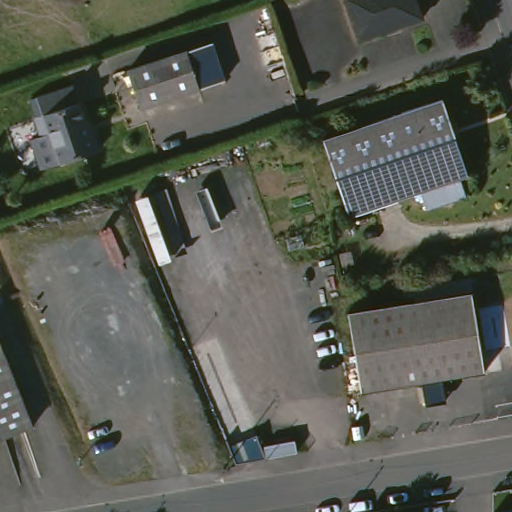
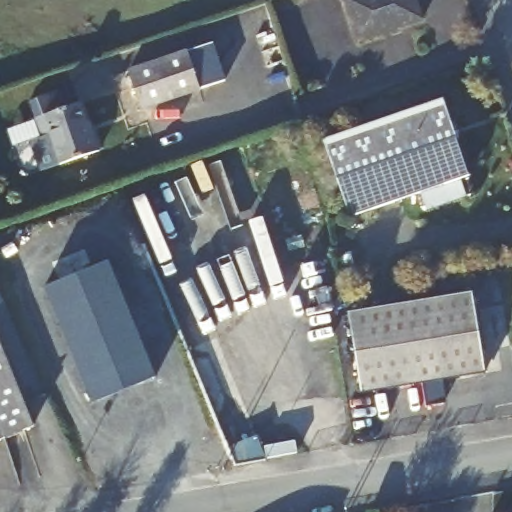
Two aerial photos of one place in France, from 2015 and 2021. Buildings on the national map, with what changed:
unchanged [(387,31),(388,34),(358,44),(343,0),(416,0),(423,19),(387,31)]
unchanged [(186,52),(199,91),(141,111),(127,72),(186,52)]
unchanged [(72,87),(88,132),(92,132),(99,151),(59,165),(49,136),(40,139),(34,121),(28,102),(72,87)]
unchanged [(447,101),(473,177),(465,181),(470,197),(431,211),(425,194),(354,218),(327,142),(447,101)]
new [(107,262),(154,380),(91,405),(44,287),(107,262)]
unchanged [(484,375),(361,395),(347,314),(471,293),(484,375)]
unchanged [(0,448),(0,342),(37,432),(0,448)]

